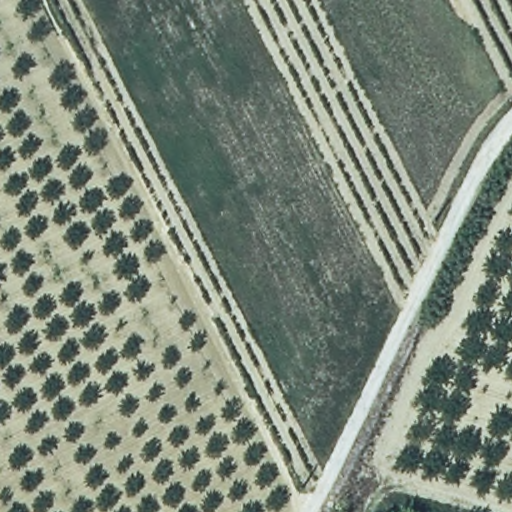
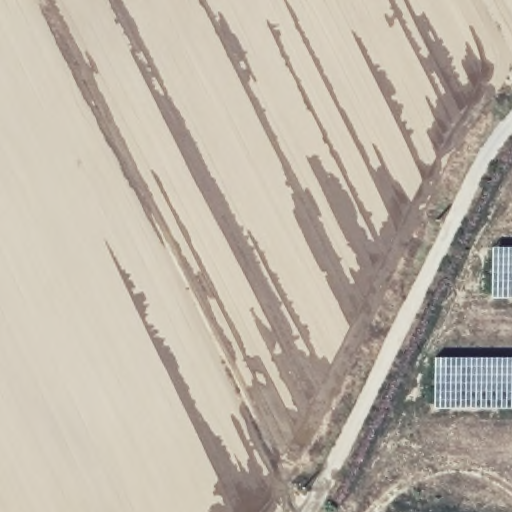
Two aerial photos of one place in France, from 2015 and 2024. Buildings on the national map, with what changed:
new [(490,248),(512,248),(512,297),(489,297),(490,248)]
new [(433,359),(512,358),(512,409),(432,409),(433,359)]

